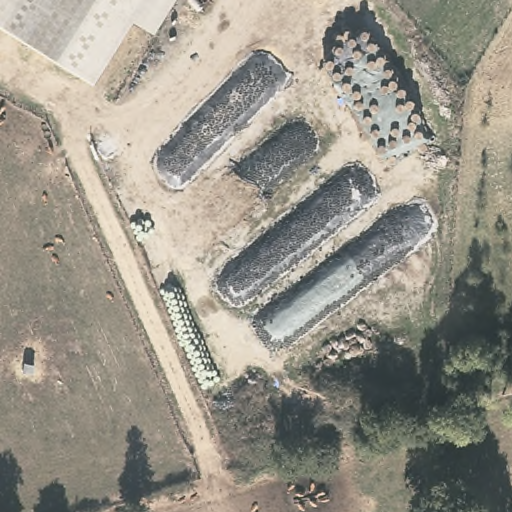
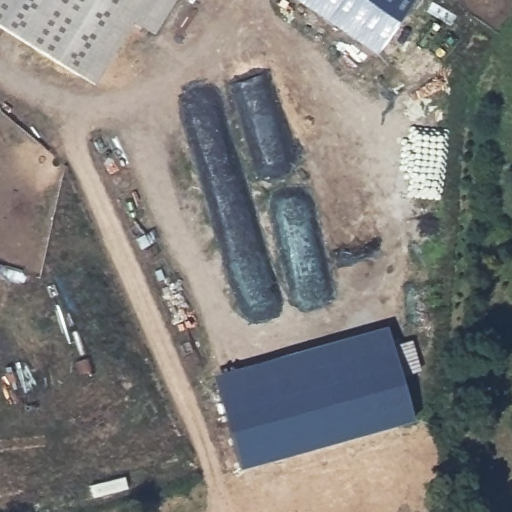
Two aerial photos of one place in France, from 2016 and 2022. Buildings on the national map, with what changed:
unchanged [(132,23),(91,86),(0,29),(0,0),(174,0),(153,35),(132,23)]
new [(386,324),(414,419),(238,468),(213,374),(386,324)]

